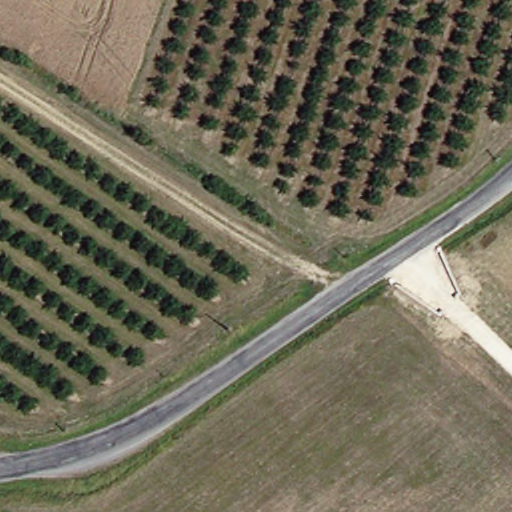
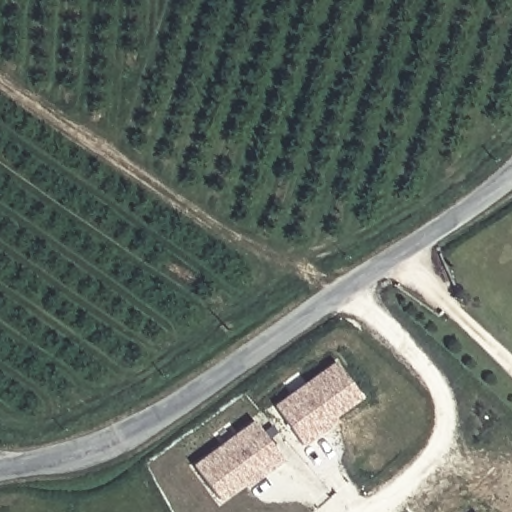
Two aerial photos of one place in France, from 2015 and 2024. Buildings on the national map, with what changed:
new [(320,434),(306,445),(278,407),(339,362),(363,395),(336,415),(340,420),(320,434)]
new [(248,482),(221,500),(196,467),(256,422),(287,464),(273,474),(254,489),(248,482)]

